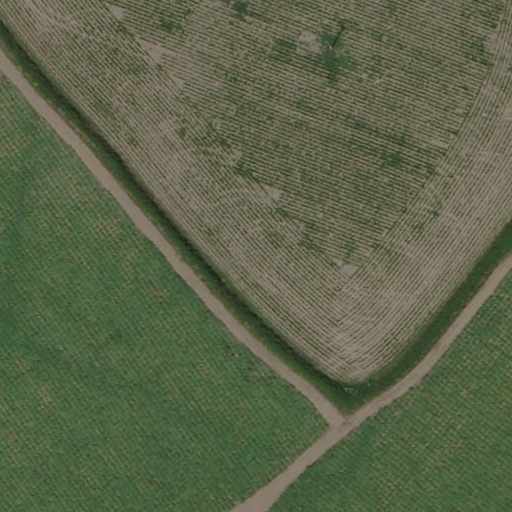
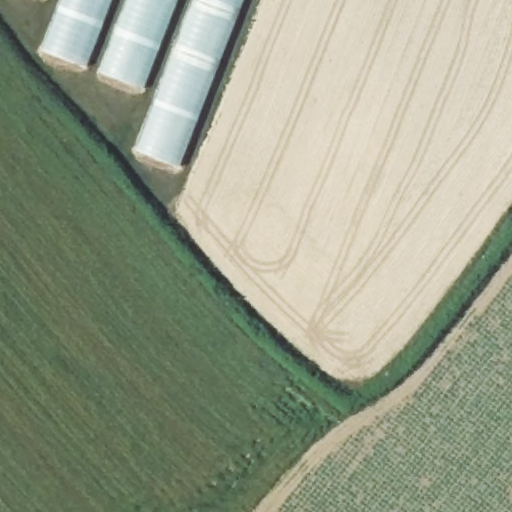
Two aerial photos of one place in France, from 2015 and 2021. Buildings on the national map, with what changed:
new [(139,151),(161,92),(45,51),(64,1),(63,0),(242,0),(179,167),(139,151)]

